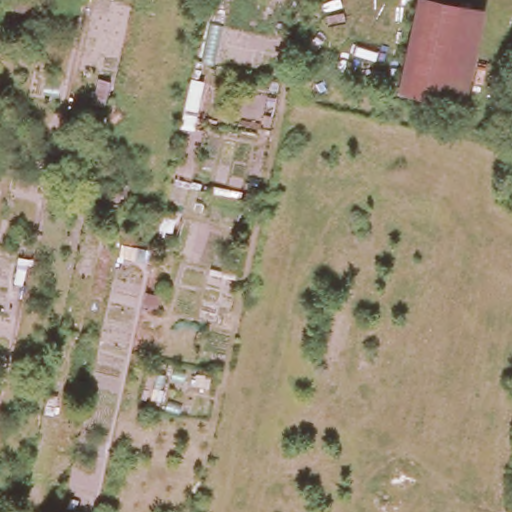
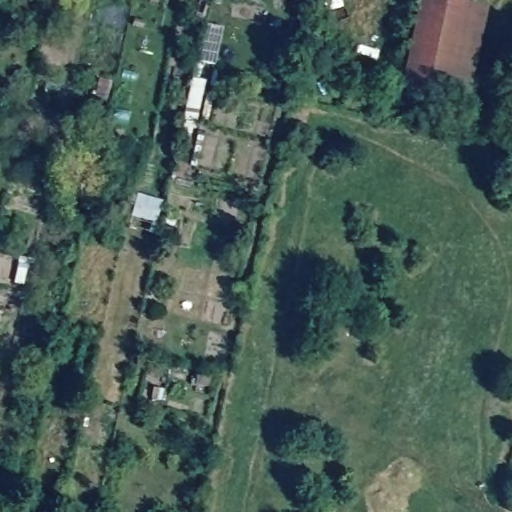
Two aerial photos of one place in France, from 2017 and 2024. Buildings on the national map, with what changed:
unchanged [(485,14),(464,112),(397,97),(418,0),(425,0),(485,14)]
unchanged [(105,80),(115,82),(110,106),(100,104),(105,80)]
unchanged [(181,125),(190,86),(202,89),(194,128),(181,125)]
unchanged [(94,133),(104,135),(102,144),(100,152),(90,150),(94,133)]
unchanged [(134,186),(132,198),(121,195),(124,184),(134,186)]
unchanged [(123,236),(124,230),(132,232),(130,238),(123,236)]
unchanged [(142,305),(145,292),(155,295),(152,307),(142,305)]
unchanged [(145,406),(135,404),(137,398),(147,400),(145,406)]
unchanged [(155,475),(146,473),(148,465),(157,467),(155,475)]

